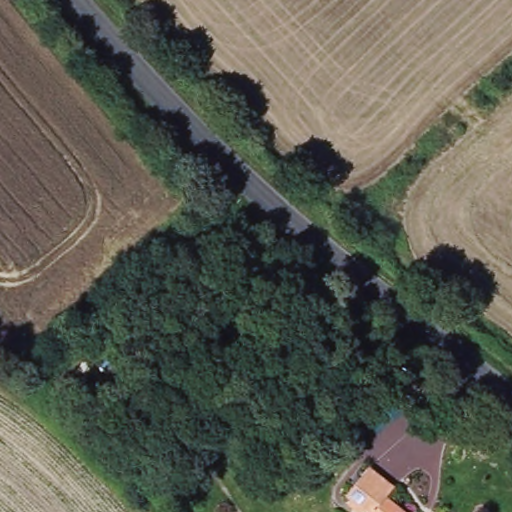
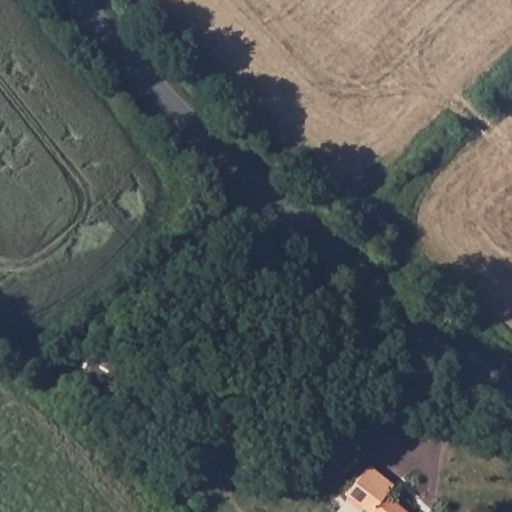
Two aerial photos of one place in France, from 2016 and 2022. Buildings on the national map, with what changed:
unchanged [(345,495),(368,467),(393,486),(386,496),(406,512),(367,512),(345,495)]

